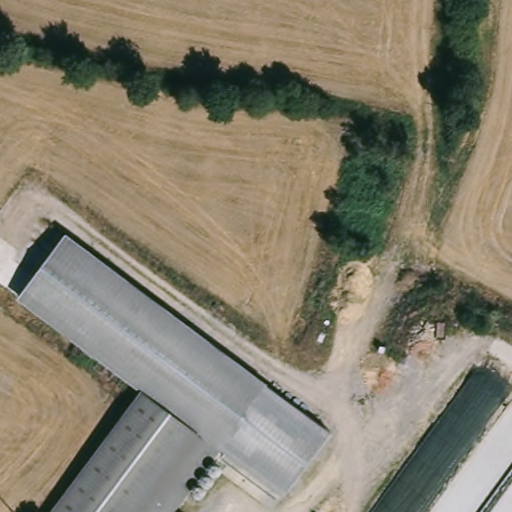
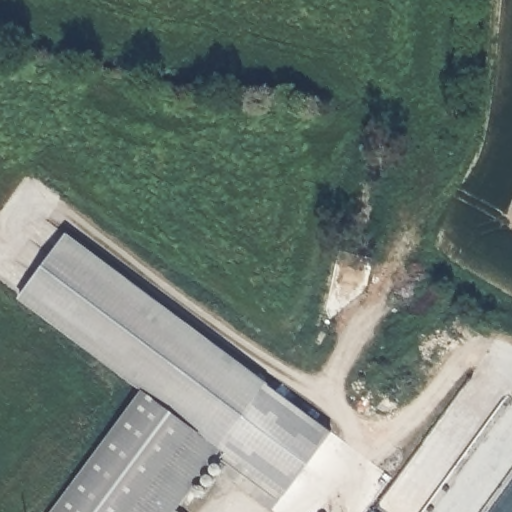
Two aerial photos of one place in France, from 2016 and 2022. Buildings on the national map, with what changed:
unchanged [(179,313),(268,381),(222,443),(146,386),(143,384),(142,383),(132,376),(22,293),(69,231),(179,313)]
unchanged [(332,431),(286,493),(221,445),(222,443),(268,381),(332,431)]
unchanged [(146,386),(142,383),(143,384),(222,443),(221,445),(175,505),(184,512),(52,512),(145,388),(146,386)]

